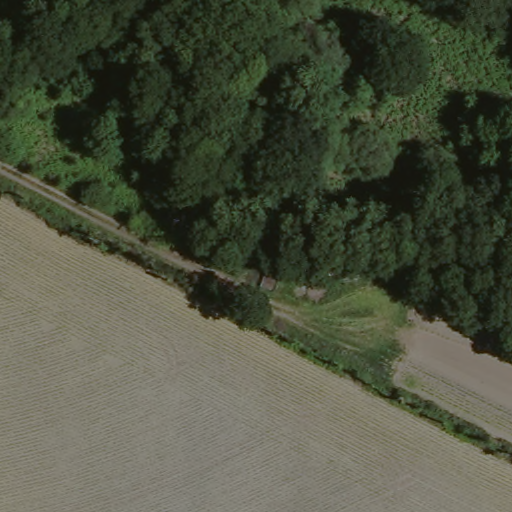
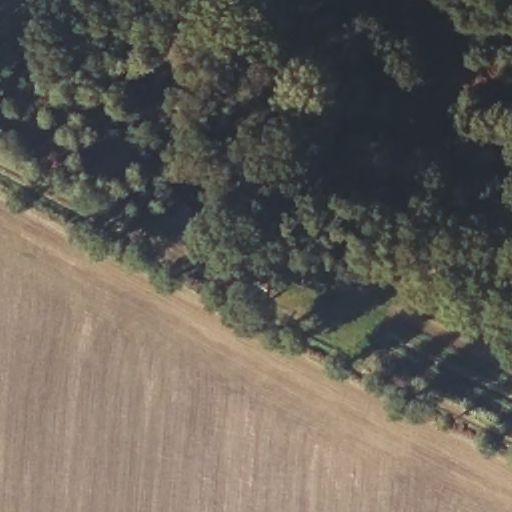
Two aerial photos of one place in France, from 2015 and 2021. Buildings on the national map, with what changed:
unchanged [(197,194),(211,211),(180,235),(163,210),(194,189),(197,194)]

